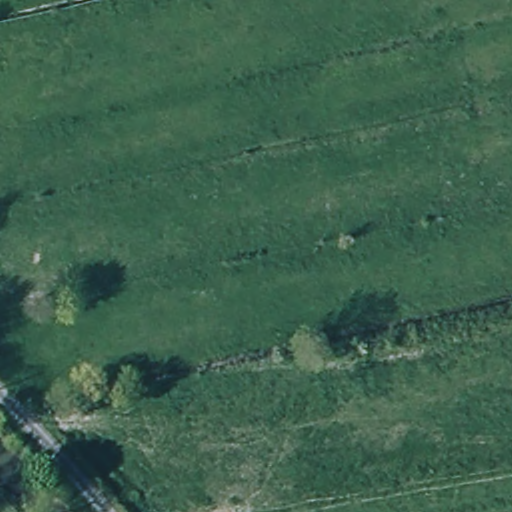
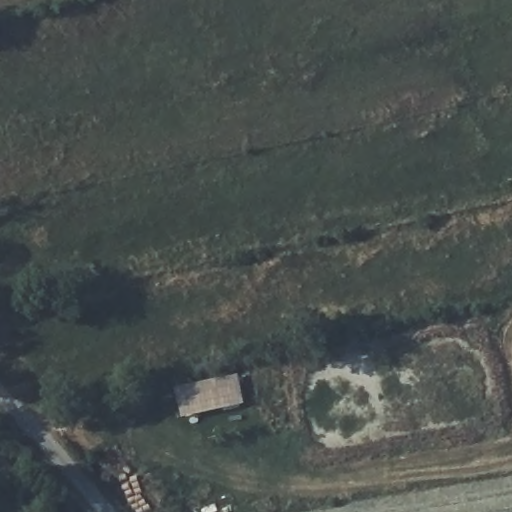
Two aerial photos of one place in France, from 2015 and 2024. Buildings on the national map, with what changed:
new [(237,375),(244,405),(181,419),(175,388),(237,375)]

